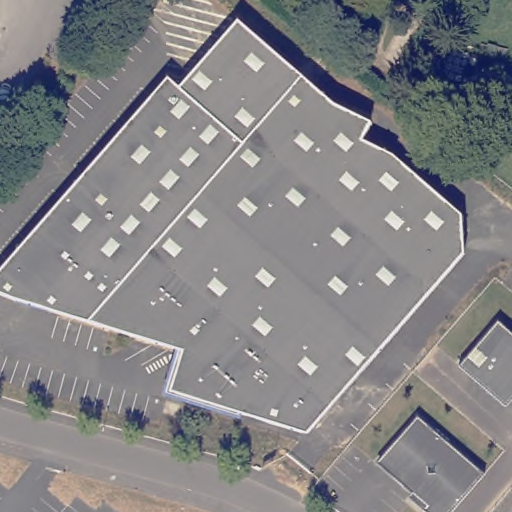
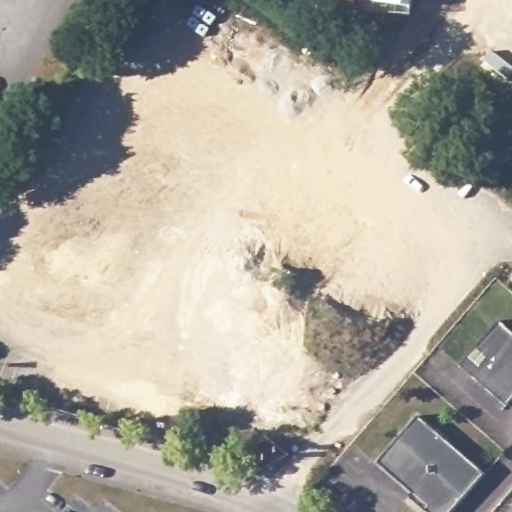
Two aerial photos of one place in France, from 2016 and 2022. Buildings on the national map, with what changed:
demolished [(330,94),(370,115),(361,133),(392,147),(461,207),(464,245),(309,423),(172,385),(183,344),(13,297),(0,291),(0,261),(166,70),(177,79),(236,11),(330,94)]
unchanged [(512,396),(505,404),(458,363),(498,318),(512,330),(512,396)]
unchanged [(488,468),(450,512),(436,512),(426,504),(430,501),(379,457),(420,410),(488,468)]

